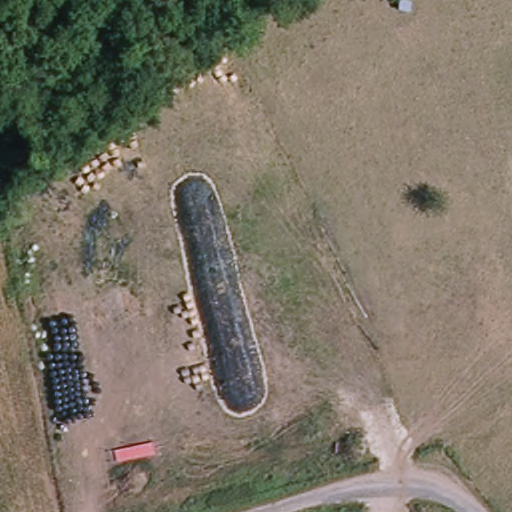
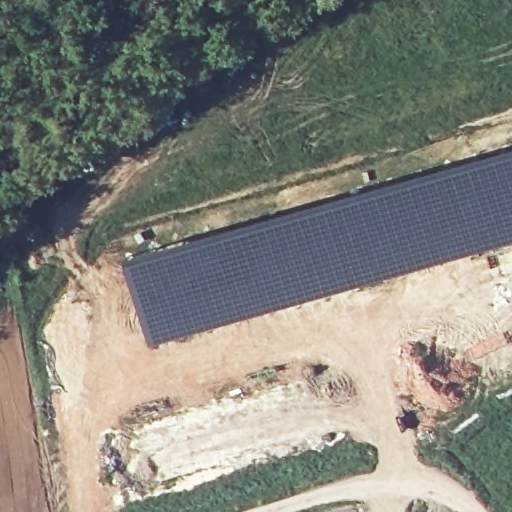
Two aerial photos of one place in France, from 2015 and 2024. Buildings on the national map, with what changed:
new [(403,177),(512,148),(512,243),(372,280),(283,307),(153,341),(130,256),(403,177)]

